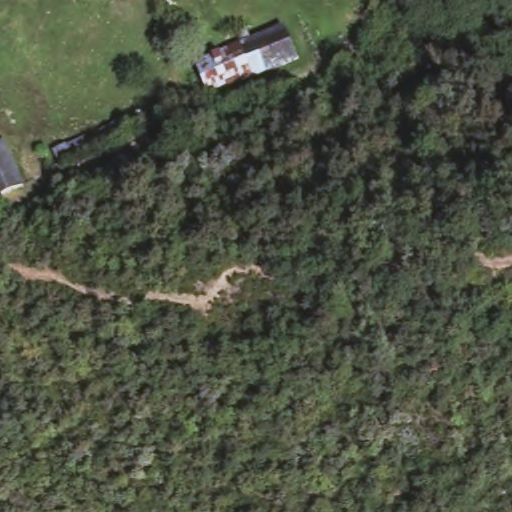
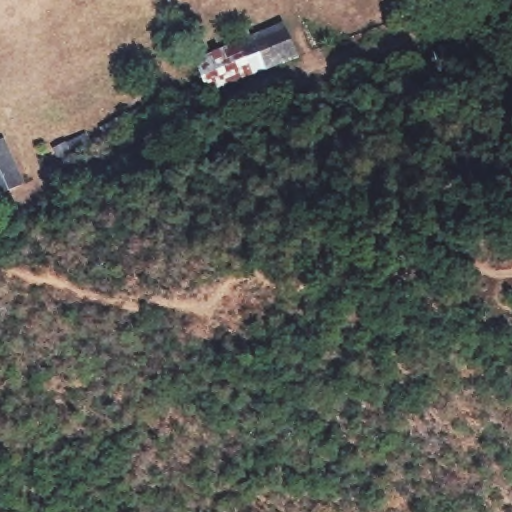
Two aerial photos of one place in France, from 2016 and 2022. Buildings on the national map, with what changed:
unchanged [(231,41),(227,31),(242,23),(247,33),(280,19),(296,58),(206,96),(189,59),(231,41)]
unchanged [(25,184),(0,195),(0,137),(1,136),(25,184)]

